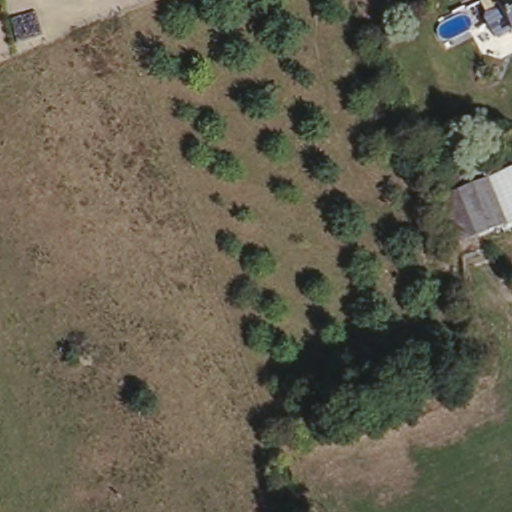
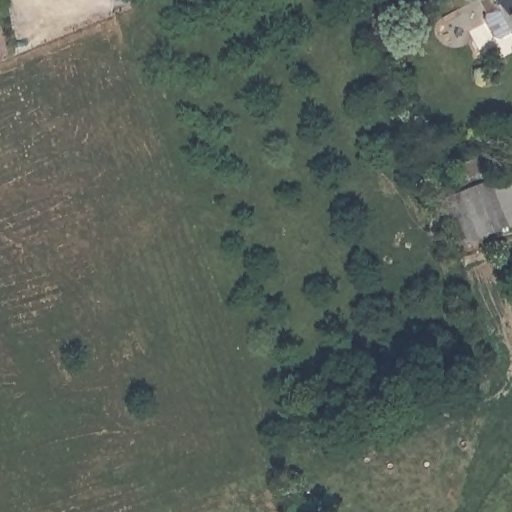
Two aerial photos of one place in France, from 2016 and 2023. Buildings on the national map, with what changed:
unchanged [(512,0),(512,8),(509,0),(512,0)]
unchanged [(481,156),(509,220),(466,237),(450,197),(443,200),(432,175),(481,156)]

